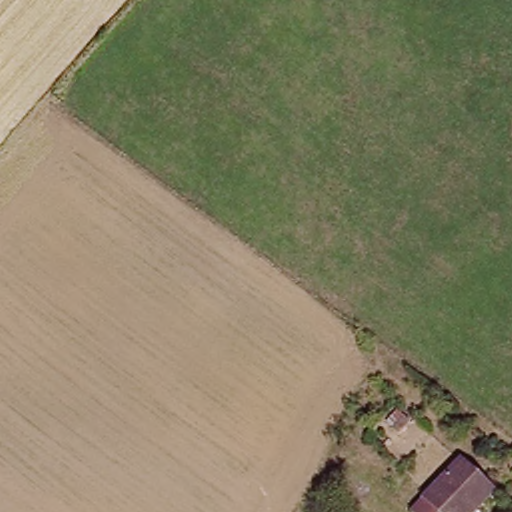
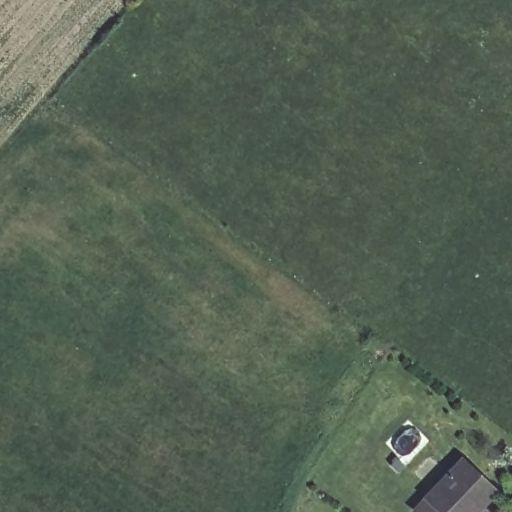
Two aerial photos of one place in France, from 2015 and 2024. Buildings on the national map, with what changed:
unchanged [(464,458),(497,485),(473,512),(419,512),(417,510),(464,458)]

